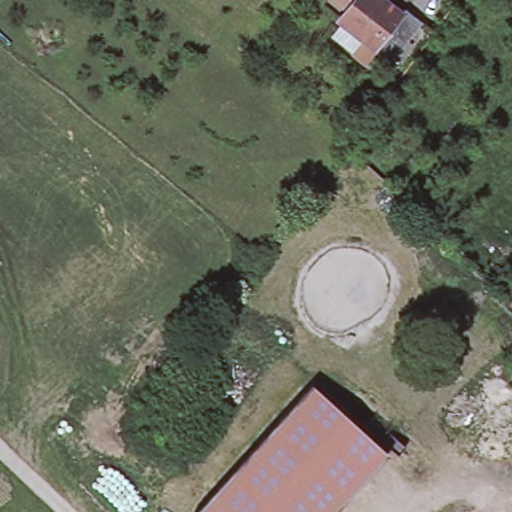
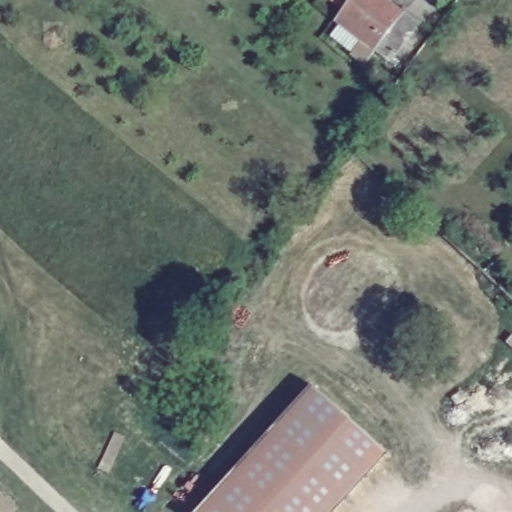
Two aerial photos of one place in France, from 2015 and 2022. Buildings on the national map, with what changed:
unchanged [(404,11),(421,24),(389,62),(374,51),(365,64),(352,55),(361,41),(336,22),(346,10),(333,0),(381,0),(401,15),(404,11)]
unchanged [(314,387),(389,453),(337,512),(202,512),(224,487),(314,387)]

